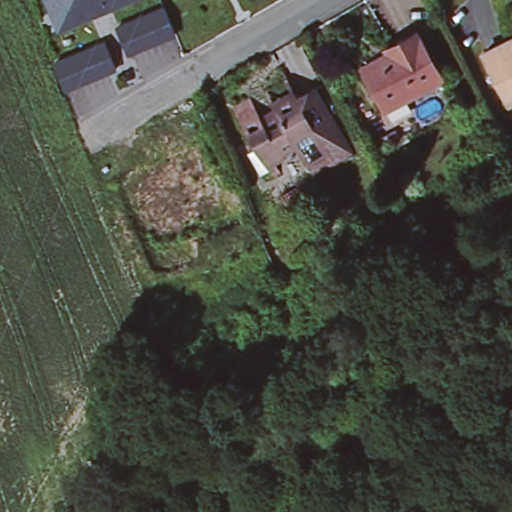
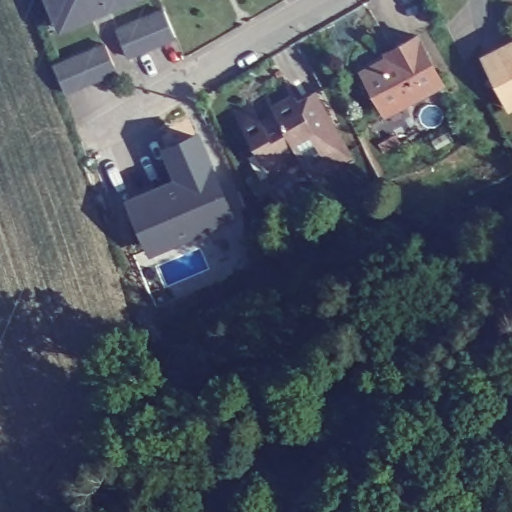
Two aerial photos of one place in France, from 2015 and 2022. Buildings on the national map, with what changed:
unchanged [(47,0),(125,0),(104,9),(94,13),(73,22),(59,28),(52,13),(47,0)]
unchanged [(126,61),(115,33),(165,11),(177,40),(126,61)]
unchanged [(381,105),(360,66),(377,56),(385,52),(383,48),(413,32),(440,80),(402,101),(385,111),(381,105)]
unchanged [(512,39),(512,101),(505,104),(481,54),(512,39)]
unchanged [(65,94),(55,68),(106,47),(117,74),(65,94)]
unchanged [(280,162),(265,170),(239,123),(255,114),(260,124),(275,116),(272,112),(293,101),(296,105),(313,96),(348,158),(310,180),(302,168),(288,176),(280,162)]
new [(195,136),(228,213),(149,246),(131,201),(180,180),(165,148),(195,136)]

